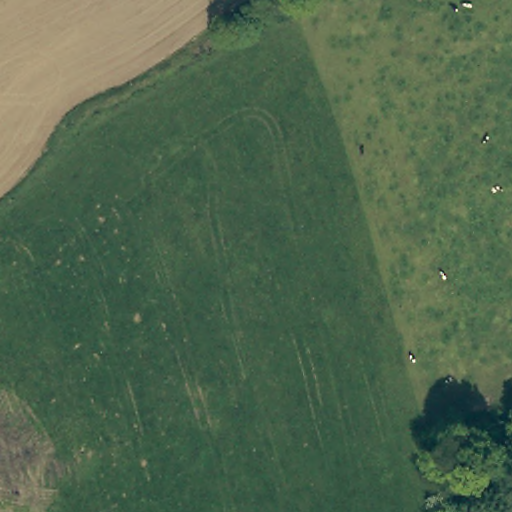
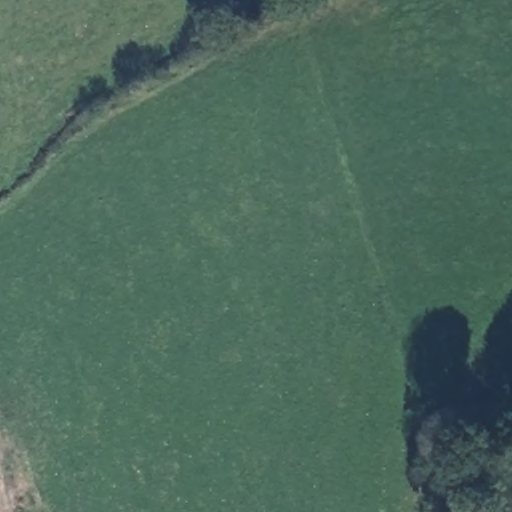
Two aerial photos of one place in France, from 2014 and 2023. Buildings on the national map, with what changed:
[]

